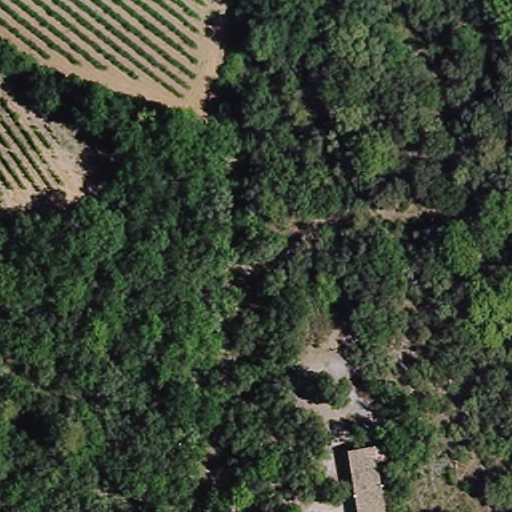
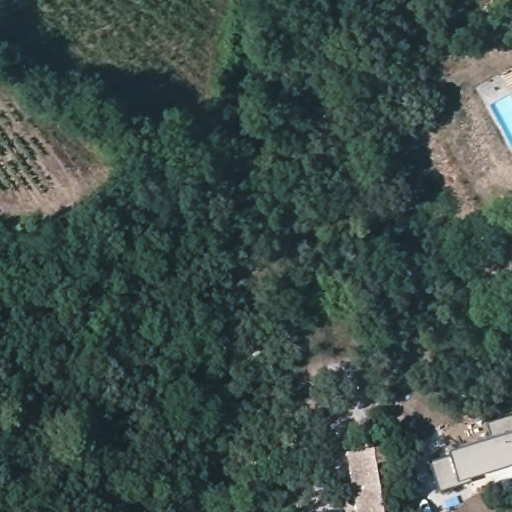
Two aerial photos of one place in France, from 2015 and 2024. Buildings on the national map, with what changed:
new [(489,418),(512,412),(512,461),(471,471),(473,477),(439,486),(430,455),(451,449),(449,443),(453,442),(493,432),(489,418)]
unchanged [(345,451),(371,446),(381,445),(384,459),(374,461),(384,512),(357,512),(345,451)]

